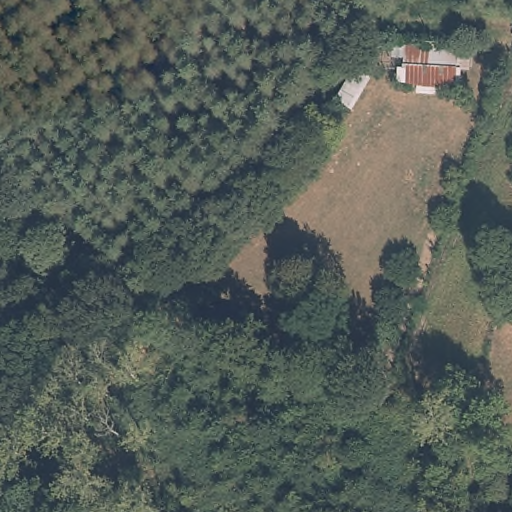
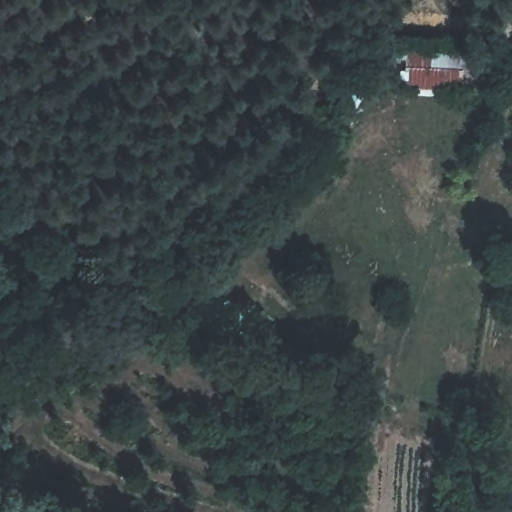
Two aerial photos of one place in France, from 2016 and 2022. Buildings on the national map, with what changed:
unchanged [(416,44),(462,46),(461,70),(417,62),(416,44)]

